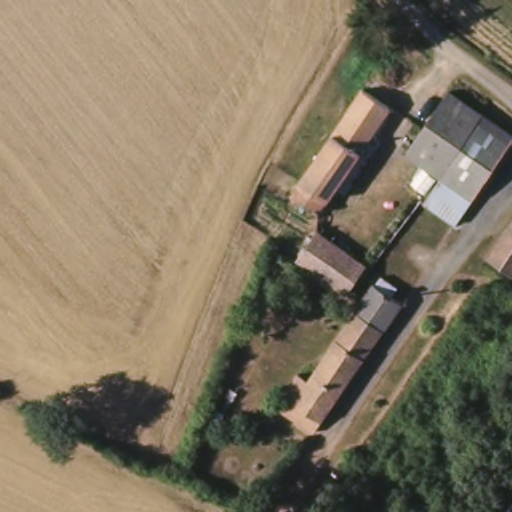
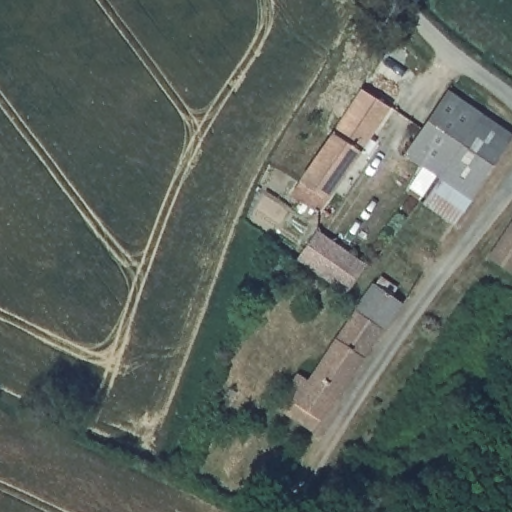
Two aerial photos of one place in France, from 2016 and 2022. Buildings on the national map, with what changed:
unchanged [(396,104),(376,140),(332,214),(313,201),(320,187),(310,183),(367,86),(396,104)]
unchanged [(412,153),(452,90),(485,111),(443,174),(412,153)]
unchanged [(512,149),(481,196),(450,177),(443,174),(485,111),(512,128),(512,149)]
unchanged [(466,222),(435,201),(450,177),(481,196),(466,222)]
unchanged [(512,280),(488,265),(512,226),(512,280)]
unchanged [(373,263),(355,293),(306,263),(325,233),(373,263)]
unchanged [(282,408),(303,375),(315,380),(378,281),(406,297),(320,432),(282,408)]

